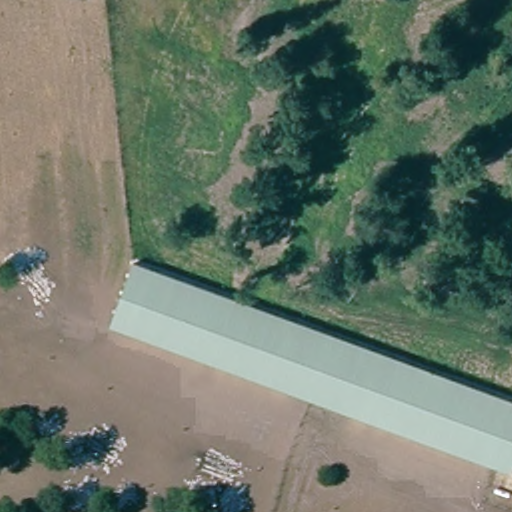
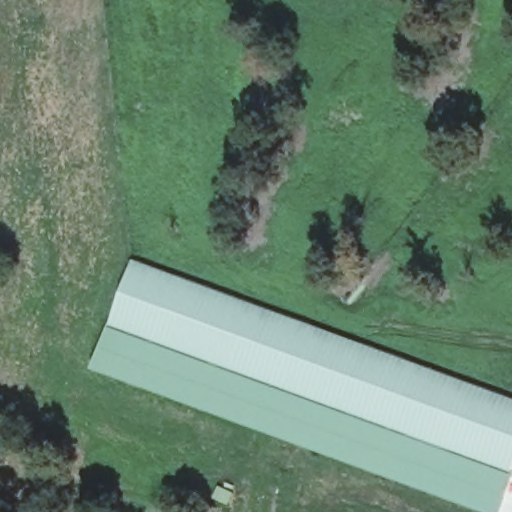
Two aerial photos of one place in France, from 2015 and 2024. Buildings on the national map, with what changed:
unchanged [(512,399),(512,472),(112,323),(135,262),(512,399)]
new [(499,512),(481,512),(92,369),(112,323),(512,472),(512,474),(499,512)]

